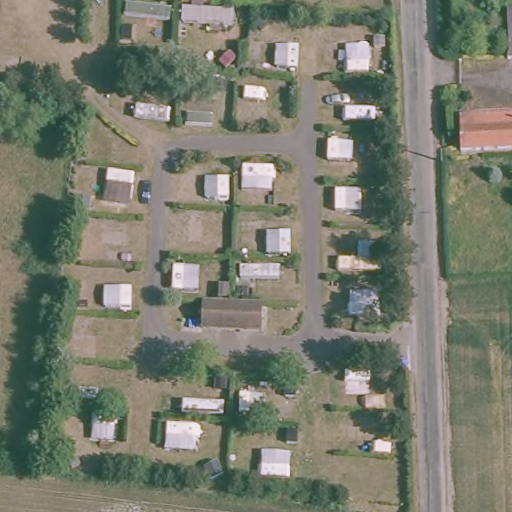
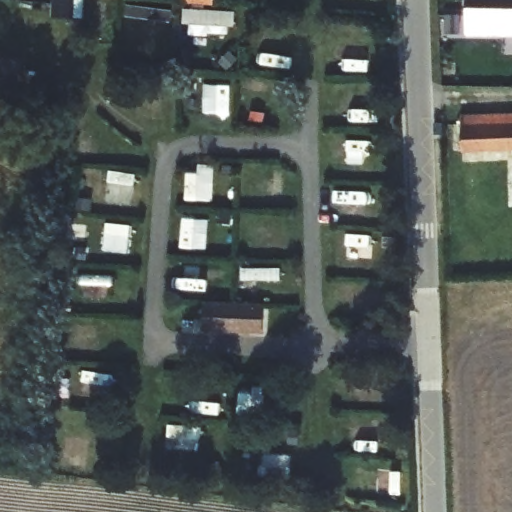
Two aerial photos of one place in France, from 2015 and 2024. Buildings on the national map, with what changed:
unchanged [(187,0),(219,0),(219,2),(187,0)]
new [(464,0),(512,0),(512,36),(465,35),(464,0)]
unchanged [(512,150),(462,150),(462,118),(512,116),(512,150)]
unchanged [(260,328),(227,326),(202,325),(202,298),(227,299),(263,301),(260,328)]

